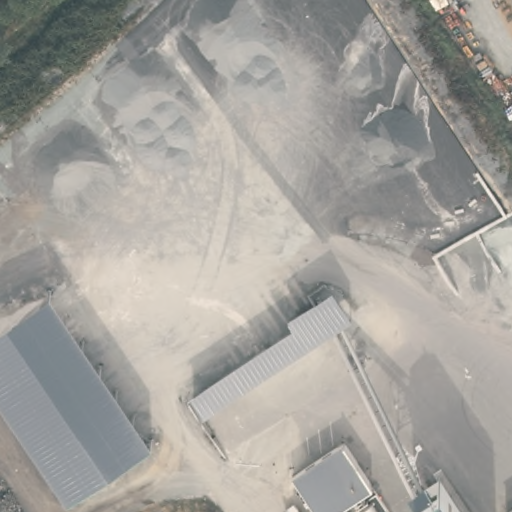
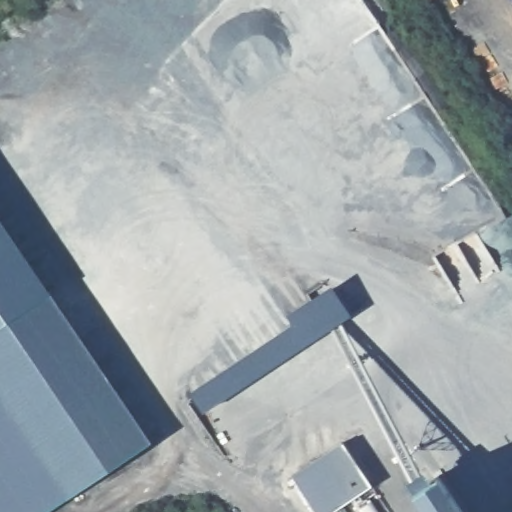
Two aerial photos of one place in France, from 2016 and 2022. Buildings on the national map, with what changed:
new [(50,289),(0,324),(0,215),(50,289)]
unchanged [(204,410),(190,392),(289,324),(283,316),(330,284),(350,314),(204,410)]
unchanged [(68,495),(0,396),(0,324),(50,289),(150,440),(68,495)]
new [(43,512),(0,512),(0,395),(68,495),(43,512)]
unchanged [(343,443),(371,485),(329,512),(317,512),(293,476),(343,443)]
unchanged [(440,473),(466,512),(429,512),(414,490),(440,473)]
unchanged [(512,506),(512,512),(504,512),(503,511),(512,506)]

